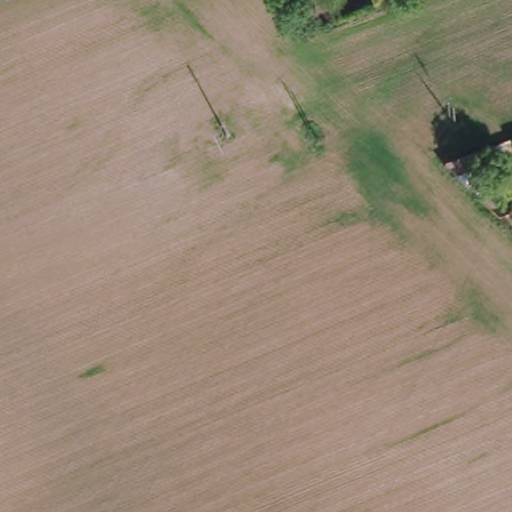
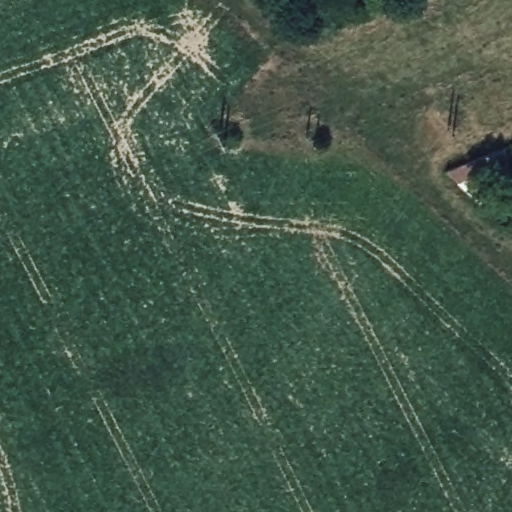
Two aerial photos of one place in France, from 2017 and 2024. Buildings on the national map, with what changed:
unchanged [(461,182),(448,169),(498,150),(504,165),(477,175),(492,195),(482,202),(466,186),(461,182)]

